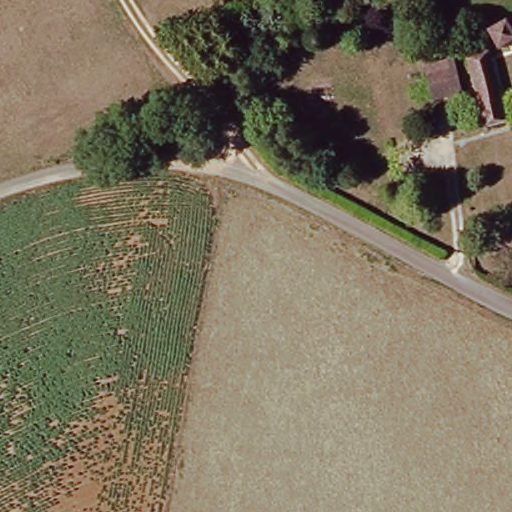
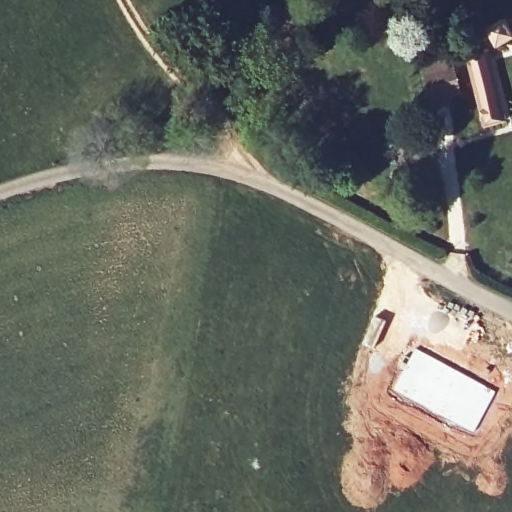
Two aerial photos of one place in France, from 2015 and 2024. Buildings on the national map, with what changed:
unchanged [(503,55),(494,34),(512,27),(512,51),(503,55)]
unchanged [(509,126),(486,132),(469,63),(492,58),(509,126)]
unchanged [(436,101),(429,75),(441,72),(452,69),(459,94),(444,99),(436,101)]
new [(415,346),(497,390),(474,435),(391,390),(415,346)]

